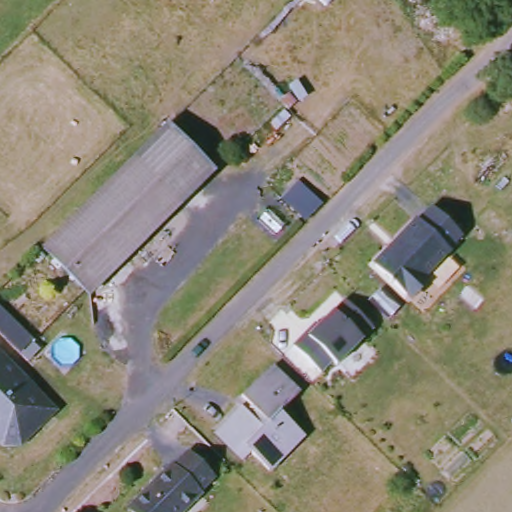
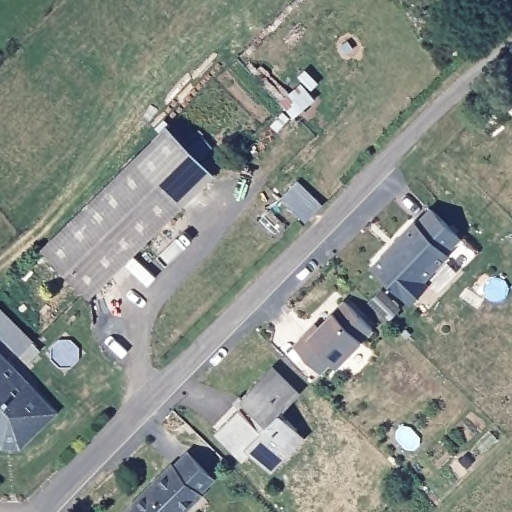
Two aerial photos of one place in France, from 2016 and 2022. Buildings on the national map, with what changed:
unchanged [(174,128),(219,172),(92,295),(48,250),(174,128)]
unchanged [(415,297),(411,293),(378,261),(420,219),(422,220),(427,215),(436,206),(465,234),(456,243),(451,249),(453,250),(427,276),(432,280),(415,297)]
unchanged [(309,330),(313,333),(349,297),(376,325),(340,362),(335,357),(323,368),(297,341),(309,330)]
unchanged [(41,350),(29,360),(22,352),(21,353),(0,331),(0,306),(41,350)]
unchanged [(61,411),(25,445),(5,446),(0,441),(0,347),(61,411)]
unchanged [(295,445),(271,468),(255,451),(247,460),(220,431),(248,405),(243,399),(274,370),(299,396),(282,412),(299,430),(305,437),(295,445)]
unchanged [(176,465),(191,451),(215,476),(201,490),(203,492),(182,512),(138,512),(131,505),(174,463),(176,465)]

